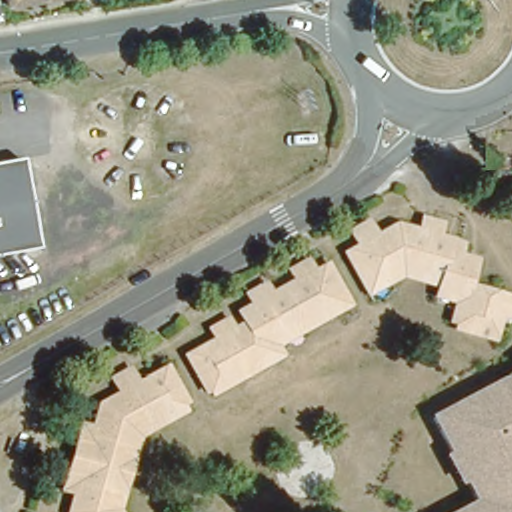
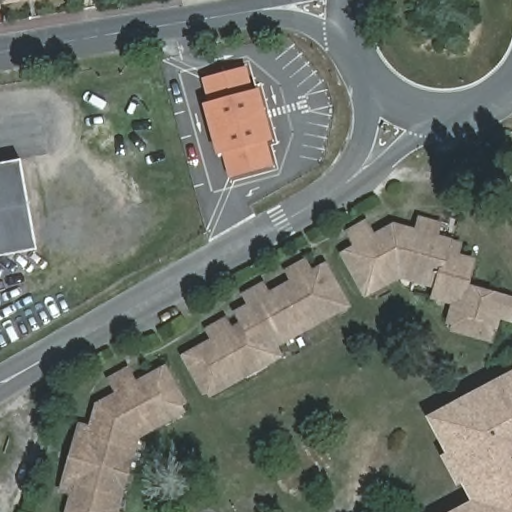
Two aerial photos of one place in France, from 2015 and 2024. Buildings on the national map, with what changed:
unchanged [(0,0),(14,0),(0,2),(0,0)]
new [(221,154),(216,156),(202,104),(207,103),(201,80),(246,68),(253,94),(259,93),(272,140),(267,142),(273,166),(228,179),(221,154)]
unchanged [(0,166),(20,162),(27,201),(0,206),(0,166)]
unchanged [(37,252),(0,259),(0,206),(27,201),(37,252)]
unchanged [(494,304),(490,324),(452,315),(457,290),(434,285),(437,270),(394,259),(356,280),(339,248),(352,240),(346,229),(362,219),(367,232),(389,220),(413,226),(416,217),(431,220),(429,230),(451,235),(449,248),(467,253),(461,278),(509,289),(507,299),(506,307),(494,304)]
unchanged [(295,323),(301,334),(211,384),(209,379),(191,344),(214,331),(208,319),(225,310),(231,323),(240,318),(234,306),(253,295),(248,286),(264,277),(266,282),(291,268),(289,264),(304,254),(310,264),(324,257),(342,291),(345,295),(295,323)]
unchanged [(79,437),(83,421),(95,424),(101,402),(121,391),(114,377),(129,369),(136,383),(162,369),(180,404),(134,429),(112,508),(115,512),(71,512),(69,510),(76,489),(66,486),(71,467),(76,468),(84,439),(79,437)]
unchanged [(471,498),(429,412),(512,371),(512,512),(443,512),(471,498)]

